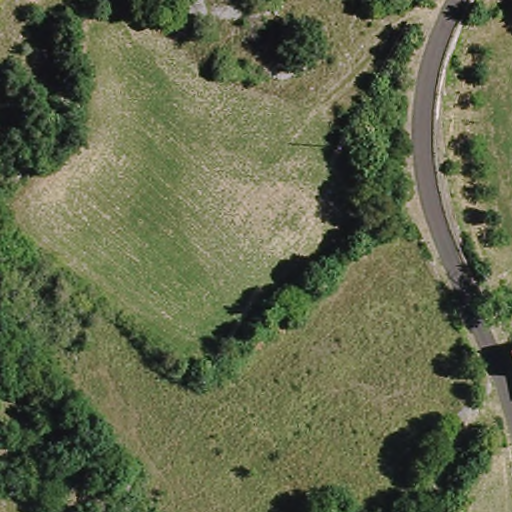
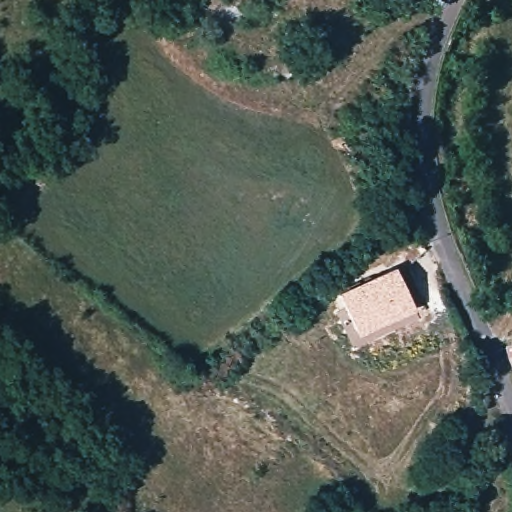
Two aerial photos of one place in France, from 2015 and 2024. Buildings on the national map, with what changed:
new [(393,264),(415,307),(357,337),(336,291),(393,264)]

